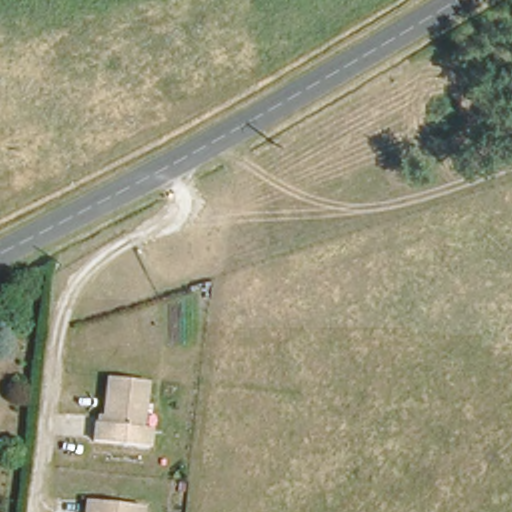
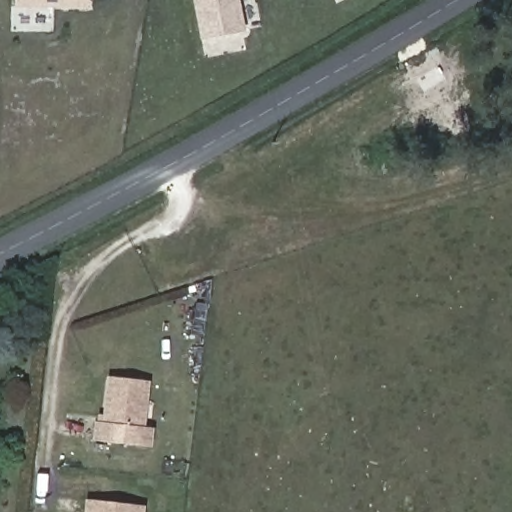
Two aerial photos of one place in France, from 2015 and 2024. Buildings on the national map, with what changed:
new [(87,4),(15,5),(15,0),(87,0),(87,4)]
new [(201,35),(193,0),(237,0),(242,26),(201,35)]
unchanged [(0,311),(0,290),(36,271),(44,289),(0,311)]
unchanged [(143,382),(138,427),(147,428),(145,448),(90,441),(92,422),(99,423),(105,377),(143,382)]
unchanged [(138,512),(82,512),(83,501),(139,507),(138,512)]

